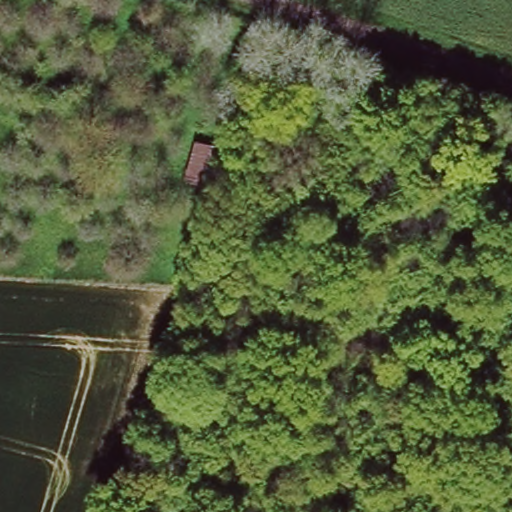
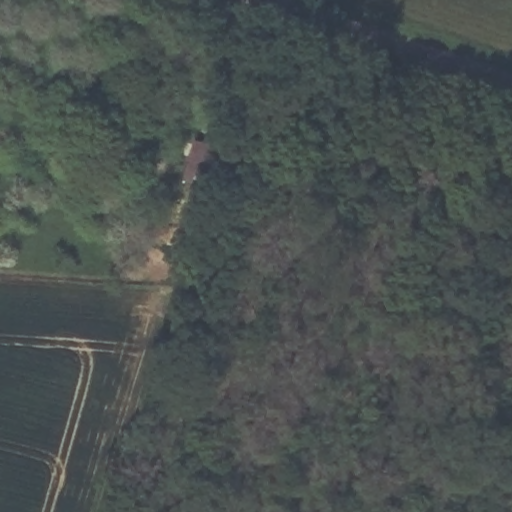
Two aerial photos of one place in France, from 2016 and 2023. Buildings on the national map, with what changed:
unchanged [(183,176),(196,131),(225,142),(211,184),(183,176)]

